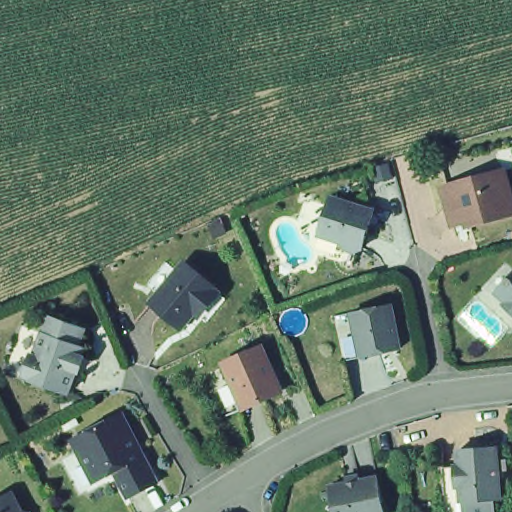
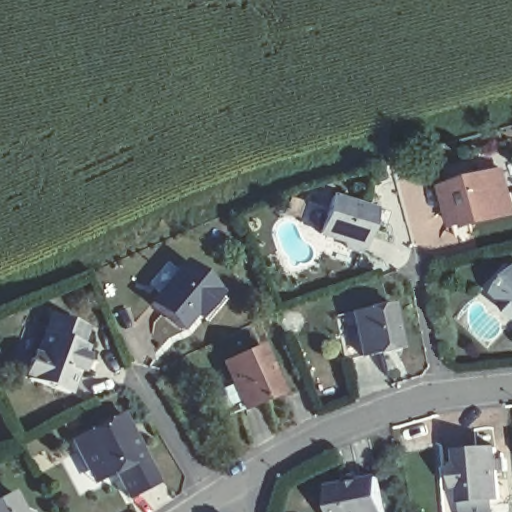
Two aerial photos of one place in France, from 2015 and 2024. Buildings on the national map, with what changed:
unchanged [(508,216),(460,229),(460,227),(445,230),(435,193),(497,175),(508,216)]
unchanged [(351,254),(350,254),(343,258),(334,255),(330,248),(307,241),(319,203),(362,217),(351,254)]
unchanged [(212,300),(192,326),(189,324),(175,339),(145,315),(153,305),(142,296),(160,274),(172,283),(181,273),(212,300)]
unchanged [(507,325),(495,312),(497,309),(487,301),(496,292),(495,290),(500,285),(502,287),(512,276),(512,324),(511,323),(507,325)]
unchanged [(387,299),(397,351),(351,361),(345,311),(387,299)]
unchanged [(42,387),(27,382),(23,373),(37,334),(57,341),(64,323),(99,334),(94,351),(99,353),(82,399),(42,387)]
unchanged [(271,397),(235,413),(214,368),(251,352),(271,397)]
unchanged [(154,483),(125,498),(110,472),(102,476),(95,464),(83,469),(67,440),(116,414),(154,483)]
unchanged [(452,458),(452,442),(489,438),(492,490),(483,491),(455,493),(454,477),(449,477),(447,458),(452,458)]
unchanged [(484,509),(439,512),(435,459),(447,458),(449,477),(454,477),(455,493),(483,491),(484,509)]
unchanged [(373,512),(322,512),(317,509),(320,502),(318,488),(335,484),(335,482),(348,479),(349,482),(367,478),(373,512)]
unchanged [(7,499),(14,512),(0,512),(0,503),(7,499)]

